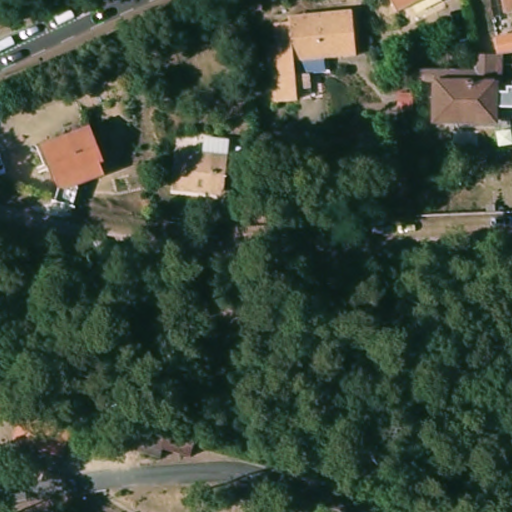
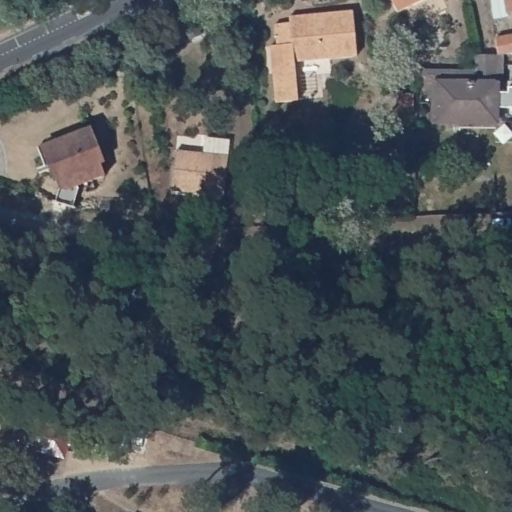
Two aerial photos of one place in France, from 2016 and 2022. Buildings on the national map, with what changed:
unchanged [(388,0),(425,0),(395,14),(388,0)]
unchanged [(496,0),(512,0),(512,10),(498,12),(496,0)]
unchanged [(285,63),(289,102),(267,104),(261,48),(269,47),(267,26),(281,25),(281,19),(346,13),(349,57),(285,63)]
unchanged [(475,70),(474,59),(497,58),(497,122),(437,122),(437,85),(417,85),(417,81),(417,72),(437,72),(475,71),(475,70)]
unchanged [(97,163),(98,168),(93,169),(91,165),(54,180),(43,154),(40,146),(86,128),(89,135),(100,162),(97,163)]
unchanged [(202,142),(226,147),(223,162),(214,199),(163,186),(171,149),(198,156),(202,142)]
unchanged [(29,418),(76,431),(69,458),(23,445),(29,418)]

